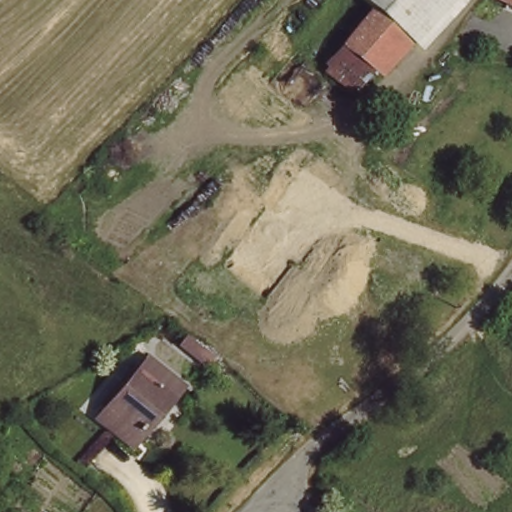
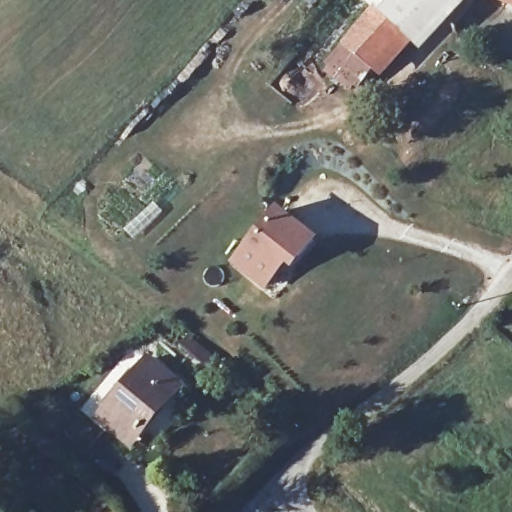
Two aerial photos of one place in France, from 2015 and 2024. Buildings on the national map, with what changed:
unchanged [(363,4),(359,0),(416,0),(394,26),(363,62),(350,79),(320,55),(335,38),(363,4)]
unchanged [(446,0),(410,41),(394,26),(416,0),(446,0)]
unchanged [(498,0),(512,0),(512,6),(498,0)]
new [(272,205),(315,239),(290,271),(284,267),(264,293),(227,264),(272,205)]
demolished [(232,209),(257,231),(237,256),(216,235),(232,209)]
unchanged [(100,435),(106,426),(92,415),(138,358),(172,386),(126,441),(118,450),(100,435)]

